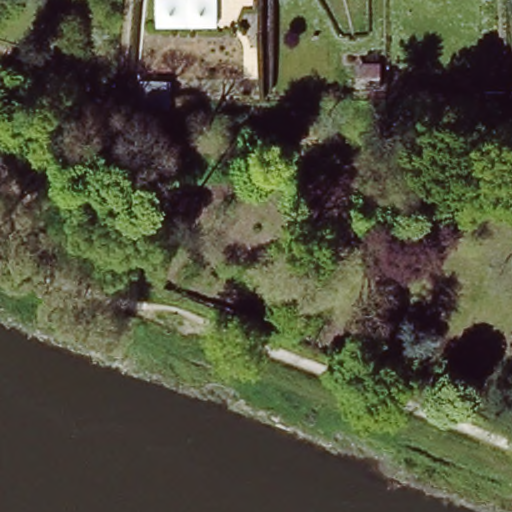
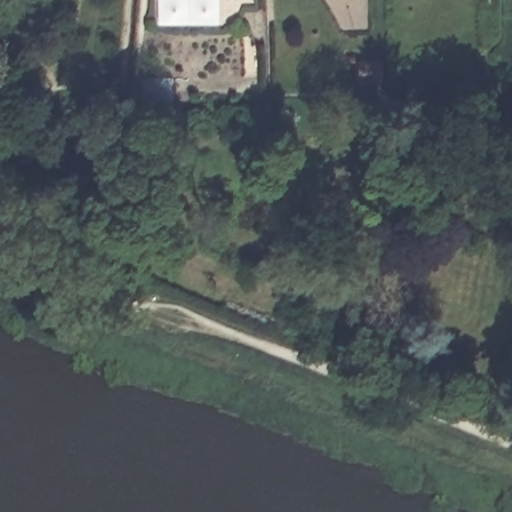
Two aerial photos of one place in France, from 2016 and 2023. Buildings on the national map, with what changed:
unchanged [(215,25),(152,26),(152,0),(213,0),(215,25)]
unchanged [(378,59),(379,80),(361,80),(361,60),(378,59)]

